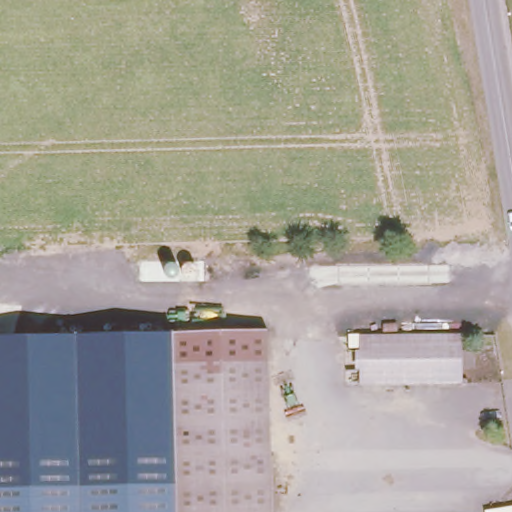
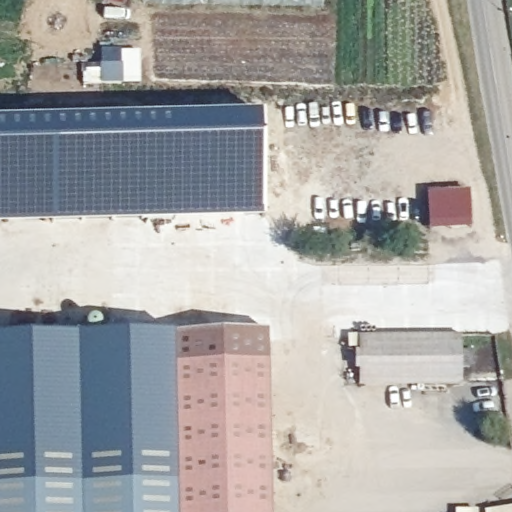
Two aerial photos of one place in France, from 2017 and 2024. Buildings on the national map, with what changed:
new [(261,115),(262,220),(0,226),(0,121),(261,115)]
new [(469,191),(471,228),(430,230),(428,192),(469,191)]
unchanged [(466,380),(363,381),(362,330),(463,329),(466,380)]
unchanged [(269,359),(179,361),(177,331),(270,330),(270,359),(269,359)]
unchanged [(175,486),(172,484),(0,487),(0,338),(172,333),(175,486)]
unchanged [(270,359),(278,441),(179,443),(179,361),(270,359)]
unchanged [(180,512),(180,489),(179,443),(278,441),(278,512),(180,512)]
unchanged [(180,489),(180,512),(0,512),(0,487),(172,484),(180,489)]

